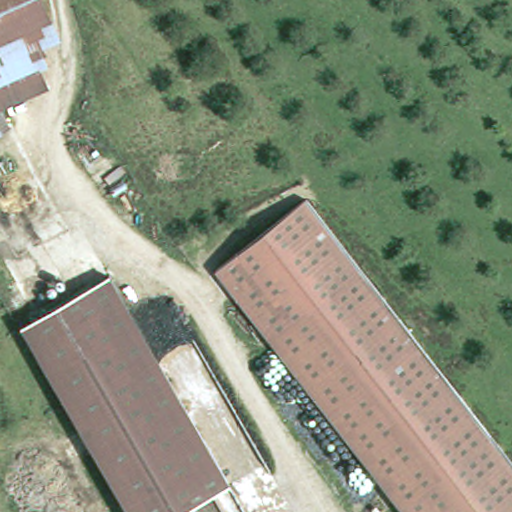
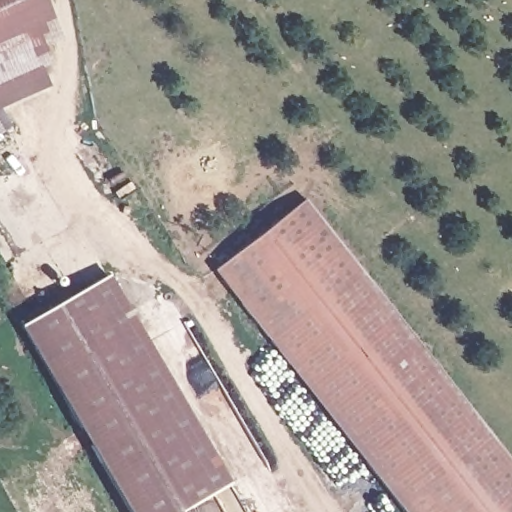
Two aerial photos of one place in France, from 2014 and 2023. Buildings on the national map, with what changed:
unchanged [(0,53),(0,0),(39,0),(50,23),(24,36),(25,40),(0,53)]
unchanged [(43,72),(0,94),(0,53),(25,40),(43,72)]
unchanged [(0,116),(7,129),(0,134),(0,116)]
unchanged [(350,240),(361,257),(393,304),(512,475),(512,512),(401,512),(291,353),(258,306),(235,272),(327,208),(350,240)]
unchanged [(107,292),(115,287),(116,289),(157,360),(185,409),(225,478),(166,512),(124,512),(91,456),(25,340),(107,292)]

